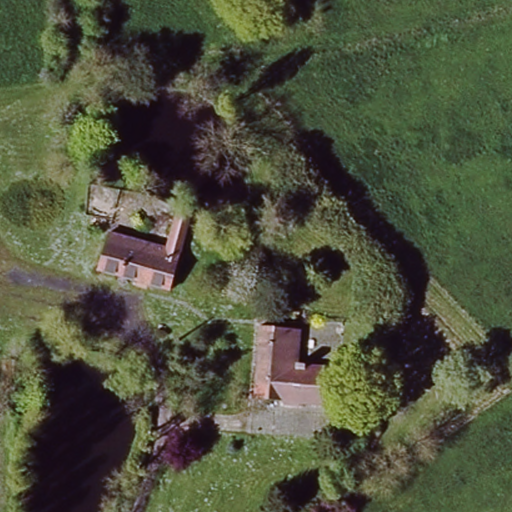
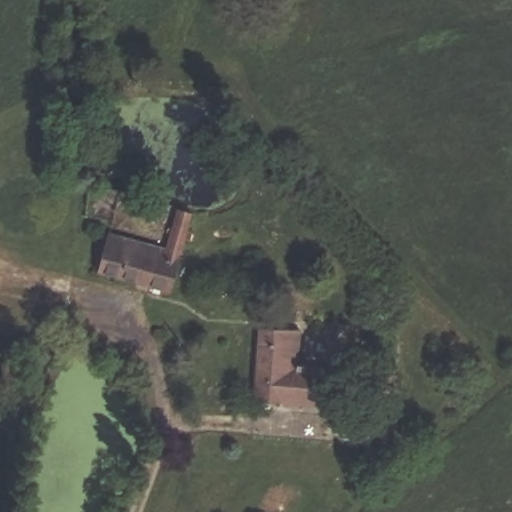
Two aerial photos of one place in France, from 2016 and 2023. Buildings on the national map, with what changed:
unchanged [(108,232),(181,255),(171,291),(96,269),(108,232)]
unchanged [(324,405),(251,399),(252,397),(264,322),(292,324),(291,327),(301,327),(298,362),(306,362),(306,369),(326,370),(326,387),(324,405)]
unchanged [(18,366),(35,366),(34,397),(16,397),(18,366)]

